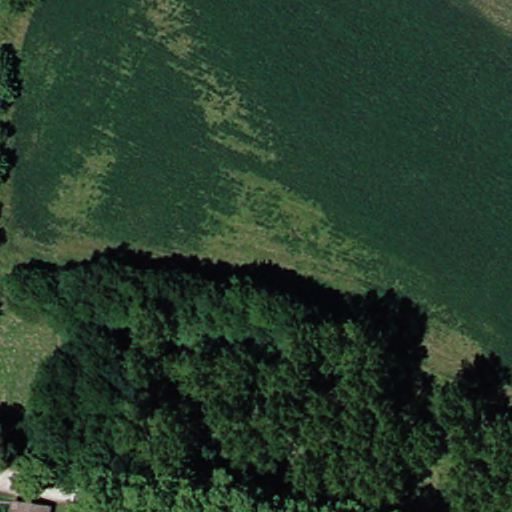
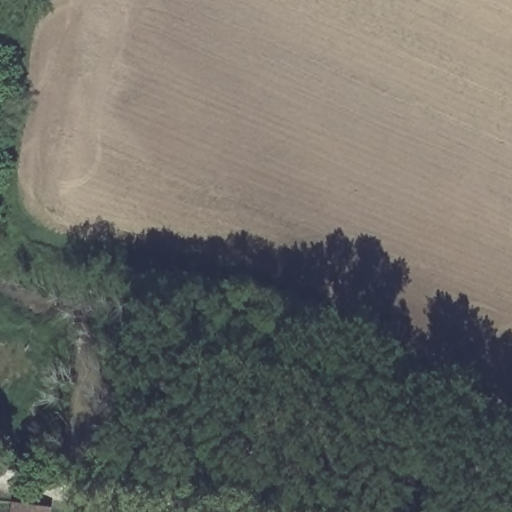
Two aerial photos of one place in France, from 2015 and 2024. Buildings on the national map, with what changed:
unchanged [(28,512),(20,512),(20,511),(28,512)]

